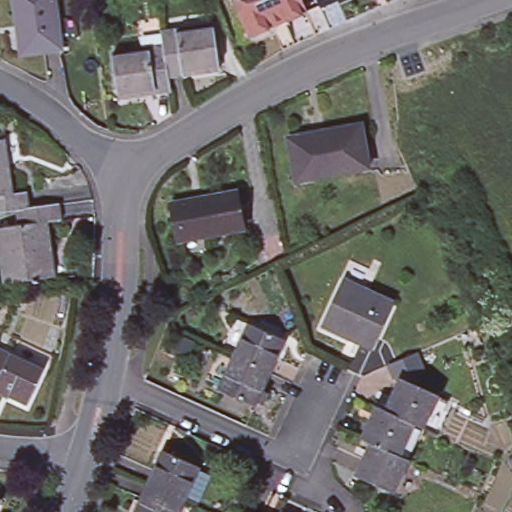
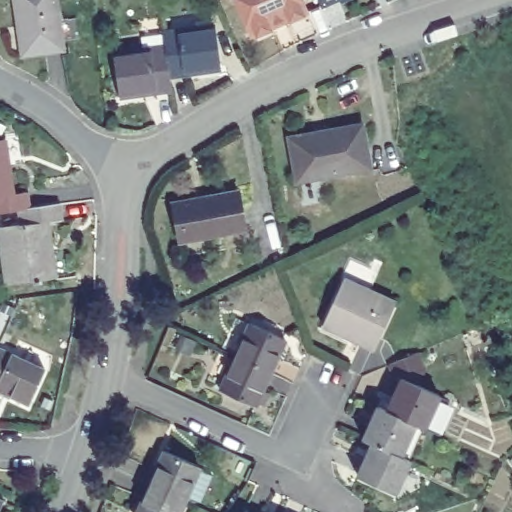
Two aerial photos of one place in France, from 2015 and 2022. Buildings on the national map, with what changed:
unchanged [(55,0),(62,49),(23,54),(15,0),(55,0)]
unchanged [(278,22),(280,26),(256,37),(240,0),(307,0),(312,13),(291,22),(289,18),(278,22)]
unchanged [(318,0),(334,0),(321,6),(318,0)]
unchanged [(340,0),(345,0),(341,2),(340,0)]
unchanged [(155,49),(156,49),(154,36),(168,33),(182,31),(220,26),(226,69),(188,74),(174,76),(176,90),(162,91),(124,97),(118,54),(155,49)]
unchanged [(301,170),(295,133),(367,120),(375,163),(320,173),(302,176),(301,170)]
unchanged [(20,220),(18,205),(0,207),(0,130),(3,131),(4,134),(5,134),(13,189),(29,187),(30,203),(61,199),(63,215),(48,217),(56,272),(6,279),(0,237),(0,223),(20,220)]
unchanged [(245,229),(179,241),(172,204),(238,192),(245,229)]
unchanged [(379,349),(327,325),(349,279),(401,303),(379,349)]
unchanged [(277,359),(270,373),(235,357),(250,324),(285,340),(281,349),(287,352),(282,361),(277,359)]
unchanged [(181,336),(195,342),(190,353),(176,347),(181,336)]
unchanged [(45,365),(29,400),(0,387),(0,343),(45,365)]
unchanged [(260,397),(255,406),(220,390),(235,357),(270,373),(262,391),(268,393),(265,399),(260,397)]
unchanged [(363,434),(378,402),(382,393),(391,397),(402,374),(402,373),(417,380),(439,390),(439,391),(449,396),(444,407),(448,409),(439,429),(424,423),(415,419),(400,451),(372,438),(363,434)]
unchanged [(394,488),(357,471),(372,438),(400,451),(409,455),(394,488)]
unchanged [(165,451),(200,467),(185,500),(150,484),(165,451)]
unchanged [(512,459),(512,465),(509,461),(512,459)]
unchanged [(179,512),(137,512),(150,484),(185,500),(179,512)]
unchanged [(0,511),(0,491),(8,495),(0,511)]
unchanged [(247,511),(250,512),(246,512),(247,511)]

